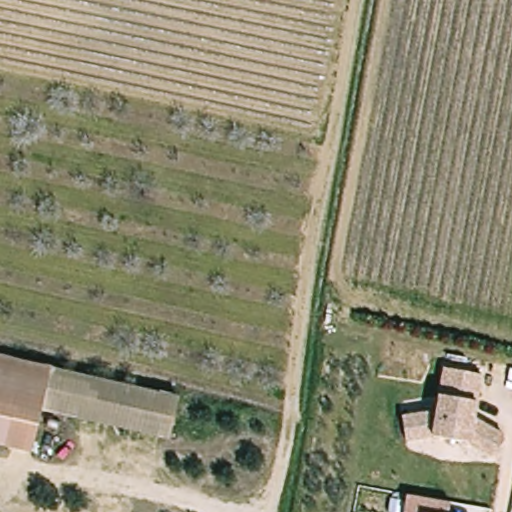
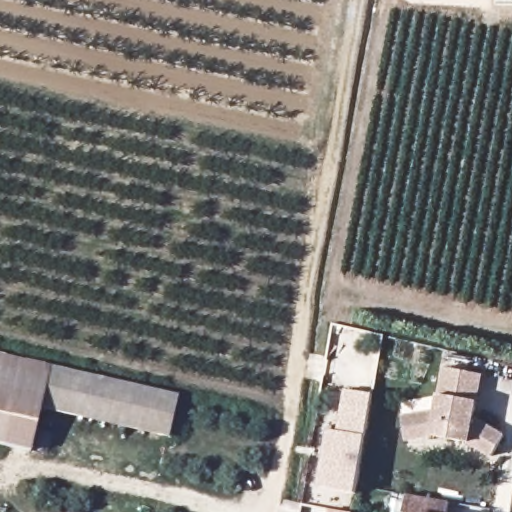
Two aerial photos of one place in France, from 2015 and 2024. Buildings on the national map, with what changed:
unchanged [(0,447),(0,359),(53,371),(44,411),(34,455),(0,447)]
unchanged [(405,414),(440,408),(447,365),(485,371),(477,415),(507,432),(495,453),(471,438),(435,432),(409,437),(405,414)]
unchanged [(181,398),(172,438),(44,411),(53,371),(181,398)]
new [(338,431),(345,390),(374,395),(367,437),(358,495),(317,487),(327,430),(338,431)]
unchanged [(449,500),(447,512),(405,512),(405,511),(402,511),(405,492),(449,500)]
new [(343,512),(328,512),(329,509),(343,512)]

